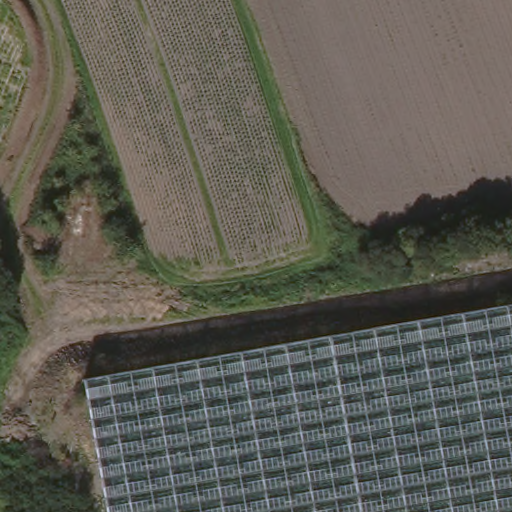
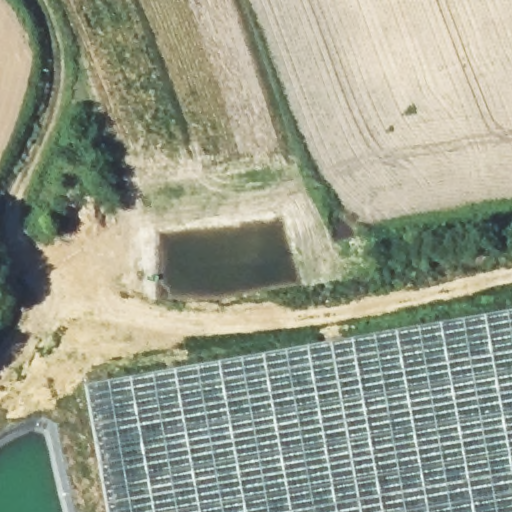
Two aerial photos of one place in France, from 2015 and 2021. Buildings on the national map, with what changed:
unchanged [(105,512),(82,381),(512,309),(512,512),(105,512)]

